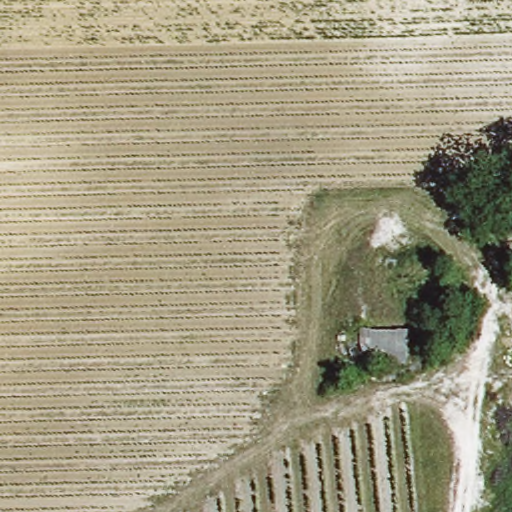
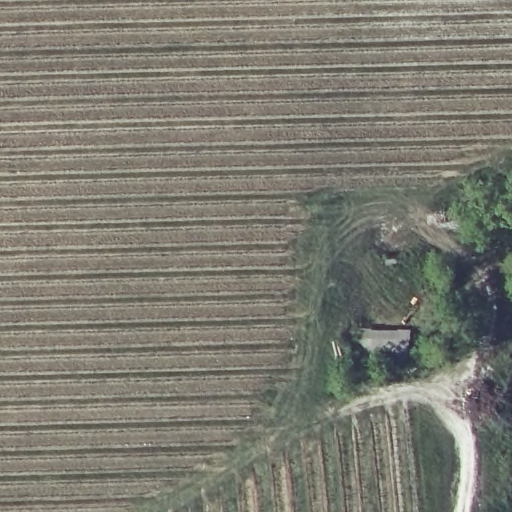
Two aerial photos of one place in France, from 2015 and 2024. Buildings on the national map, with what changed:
unchanged [(411,330),(411,366),(360,364),(361,329),(411,330)]

